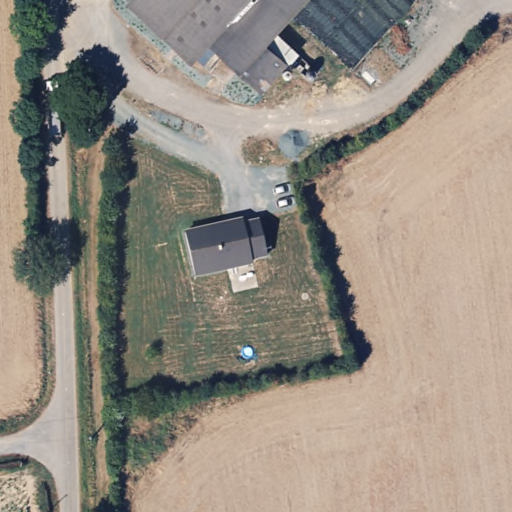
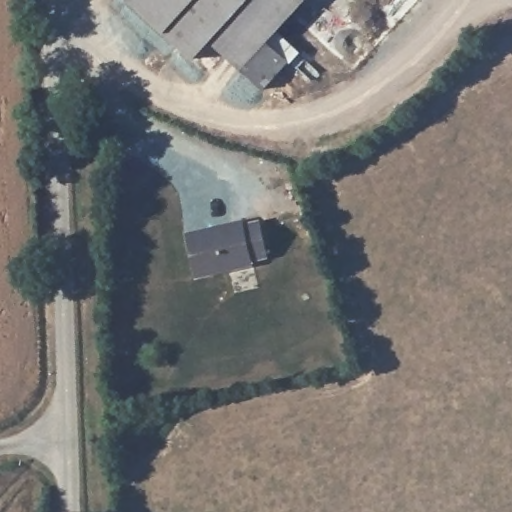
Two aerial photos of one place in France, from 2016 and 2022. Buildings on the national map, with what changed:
unchanged [(300,48),(267,85),(212,37),(196,56),(132,0),(302,0),(277,29),(300,48)]
unchanged [(244,225),(259,222),(268,256),(252,260),(253,265),(196,278),(185,236),(243,222),(244,225)]

